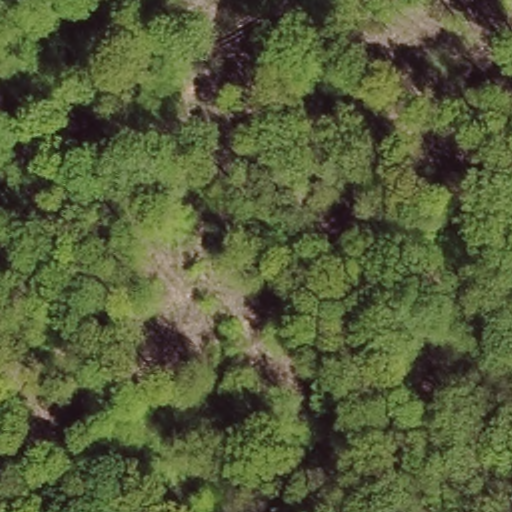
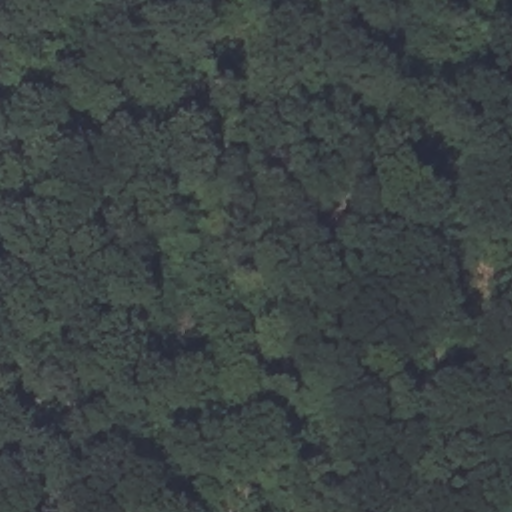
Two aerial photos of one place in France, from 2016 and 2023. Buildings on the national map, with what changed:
[]

